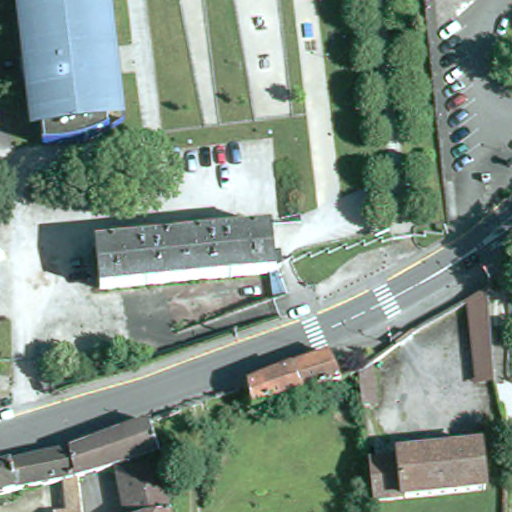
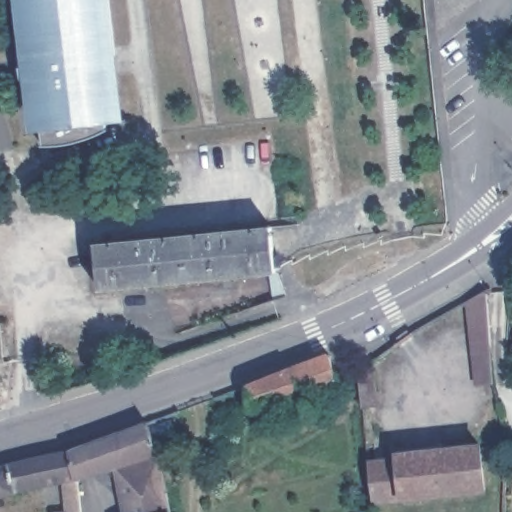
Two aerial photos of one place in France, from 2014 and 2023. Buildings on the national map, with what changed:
unchanged [(36,83),(34,83),(29,83),(25,81),(22,78),(20,74),(19,63),(28,62),(21,0),(108,0),(113,43),(114,53),(126,124),(104,127),(73,140),(43,143),(36,83)]
unchanged [(272,267),(107,288),(101,244),(273,221),(279,265),(283,289),(275,292),(272,267)]
unchanged [(512,286),(512,380),(500,380),(480,381),(470,301),(490,289),(496,286),(498,289),(512,286)]
unchanged [(345,376),(307,389),(298,364),(333,352),(345,376)]
unchanged [(307,389),(258,404),(253,382),(298,364),(307,389)]
unchanged [(377,408),(365,409),(360,374),(372,368),(377,408)]
unchanged [(122,467),(84,479),(77,452),(153,424),(164,454),(176,512),(130,512),(122,467)]
unchanged [(382,464),(409,461),(408,457),(490,446),(496,491),(387,505),(382,464)]
unchanged [(69,482),(0,499),(0,471),(77,452),(84,479),(87,512),(72,512),(69,482)]

